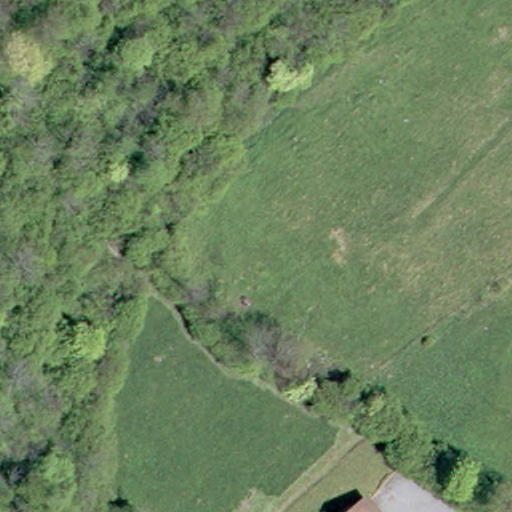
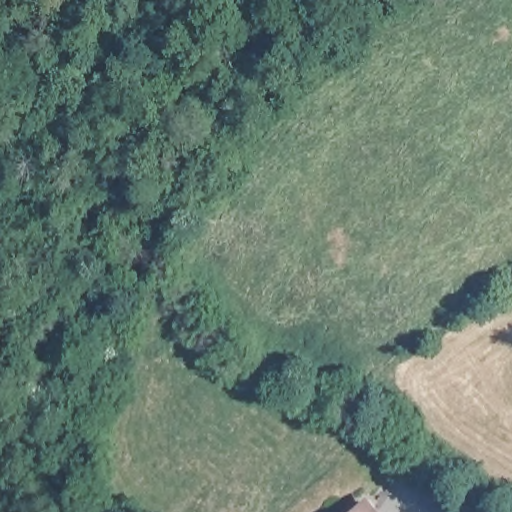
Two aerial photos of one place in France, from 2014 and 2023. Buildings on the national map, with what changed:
unchanged [(367,508),(370,512),(362,512),(367,508)]

